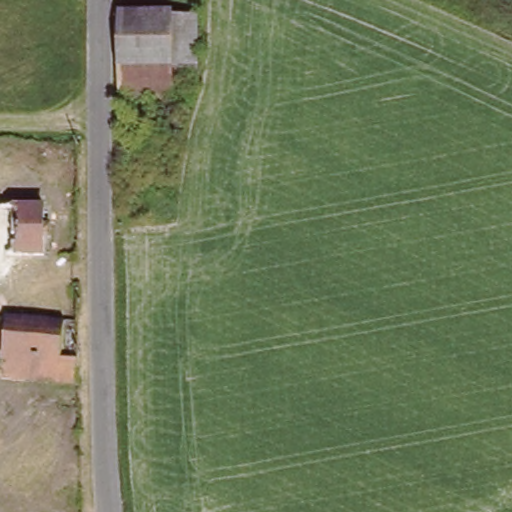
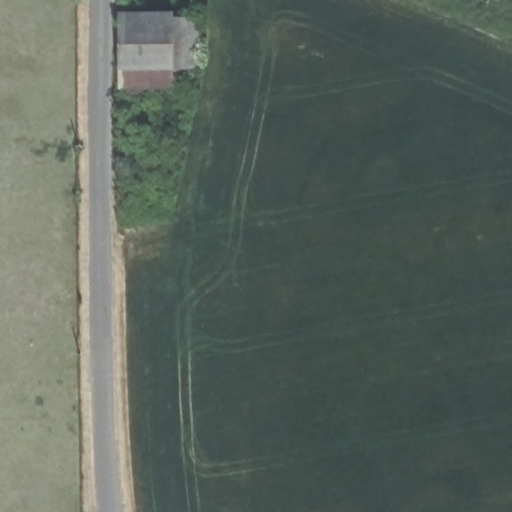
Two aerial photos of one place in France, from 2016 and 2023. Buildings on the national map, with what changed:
unchanged [(122,99),(122,80),(122,56),(121,10),(150,10),(150,80),(134,80),(134,99),(122,99)]
unchanged [(150,10),(200,10),(200,81),(176,82),(176,95),(151,96),(150,80),(150,10)]
demolished [(0,255),(0,205),(45,204),(46,255),(0,255)]
demolished [(13,350),(11,370),(0,368),(0,315),(51,320),(48,351),(21,350),(13,350)]
demolished [(81,387),(10,384),(11,370),(13,350),(21,350),(48,351),(80,352),(81,387)]

